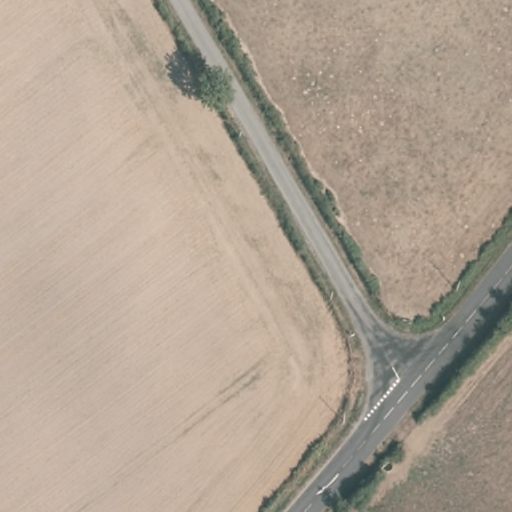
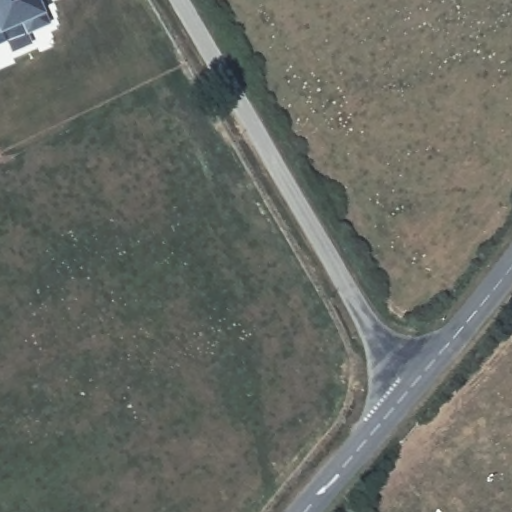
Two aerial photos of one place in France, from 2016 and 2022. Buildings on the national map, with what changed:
new [(45,14),(49,24),(25,33),(21,25),(1,33),(5,40),(0,43),(0,0),(42,0),(40,1),(45,14)]

